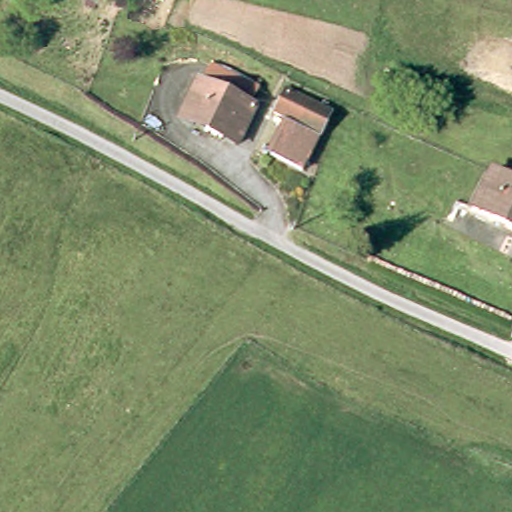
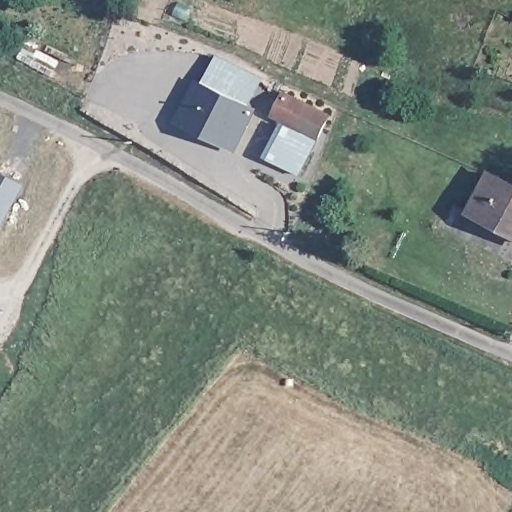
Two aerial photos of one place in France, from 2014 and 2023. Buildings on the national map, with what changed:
unchanged [(257,112),(240,151),(209,137),(210,133),(184,121),(200,86),(209,90),(224,97),(257,112)]
unchanged [(301,180),(270,165),(287,128),(273,122),(276,116),(284,99),(329,120),(325,128),(301,180)]
new [(0,232),(0,169),(26,184),(0,232)]
unchanged [(488,181),(512,193),(512,241),(470,220),(488,181)]
new [(0,315),(0,309),(2,310),(0,315)]

